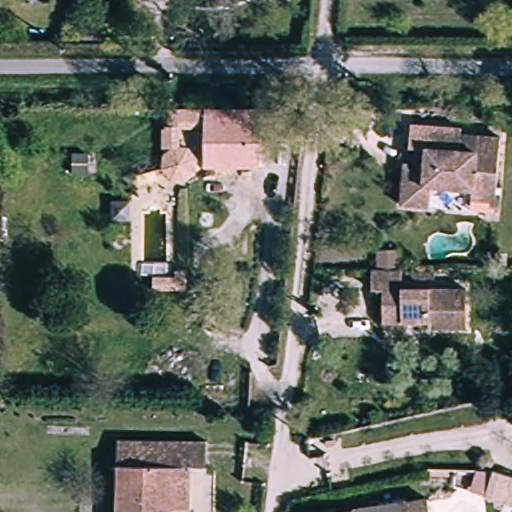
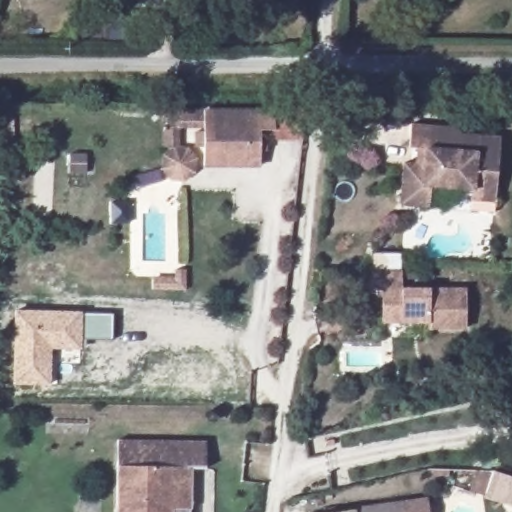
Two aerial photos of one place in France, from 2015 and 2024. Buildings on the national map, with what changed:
unchanged [(198,175),(197,125),(176,126),(176,107),(270,107),(308,107),(304,134),(270,135),(270,127),(259,127),(260,175),(198,175)]
unchanged [(470,197),(471,187),(429,183),(427,204),(398,201),(401,160),(413,161),(414,145),(406,144),(408,121),(460,126),(459,131),(499,135),(496,170),(494,199),(470,197)]
unchanged [(377,289),(365,290),(363,264),(374,262),(374,241),(394,241),(394,261),(400,260),(397,280),(424,281),(464,281),(464,326),(415,323),(413,317),(379,319),(377,289)]
new [(82,313),(112,313),(112,341),(82,340),(82,349),(52,348),(52,384),(13,384),(14,310),(82,311),(82,313)]
unchanged [(205,440),(206,465),(192,466),(193,505),(174,505),(174,512),(116,512),(114,441),(205,440)]
unchanged [(512,460),(512,486),(501,482),(497,481),(505,457),(512,460)]
unchanged [(419,505),(419,512),(297,512),(297,503),(419,505)]

